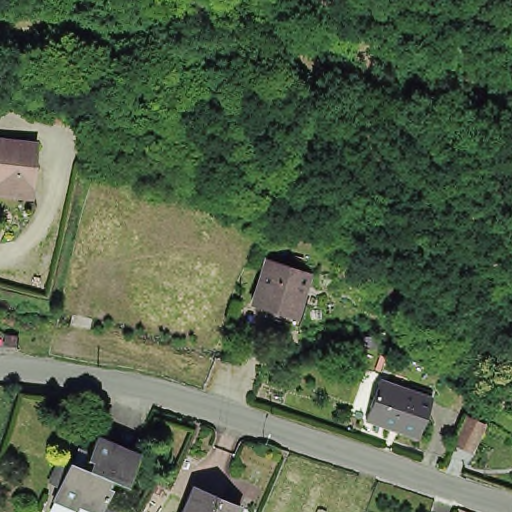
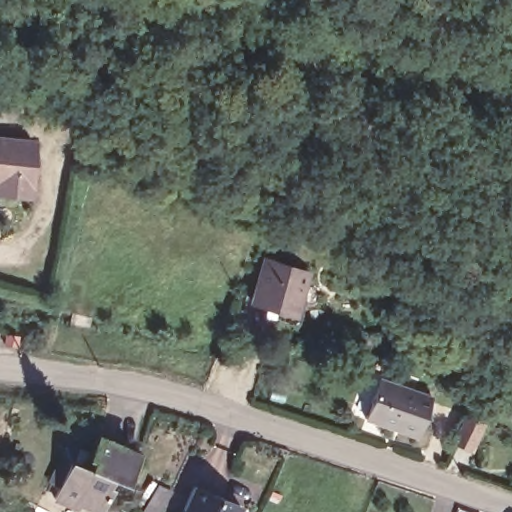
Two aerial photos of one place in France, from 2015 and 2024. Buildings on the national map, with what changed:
unchanged [(93,123),(59,119),(61,95),(75,97),(86,98),(96,99),(93,123)]
unchanged [(0,132),(31,134),(34,134),(27,187),(19,186),(0,184),(0,132)]
unchanged [(301,319),(259,306),(272,263),(314,276),(301,319)]
unchanged [(14,345),(3,342),(5,333),(16,335),(14,345)]
unchanged [(369,416),(381,377),(433,394),(427,410),(419,432),(416,431),(369,416)]
unchanged [(469,446),(451,438),(464,414),(481,423),(469,446)]
unchanged [(83,496),(79,502),(56,490),(73,454),(90,463),(94,453),(89,451),(89,449),(99,429),(140,449),(133,464),(126,477),(115,472),(99,504),(83,496)]
unchanged [(230,501),(240,506),(237,512),(184,512),(195,486),(230,501)]

